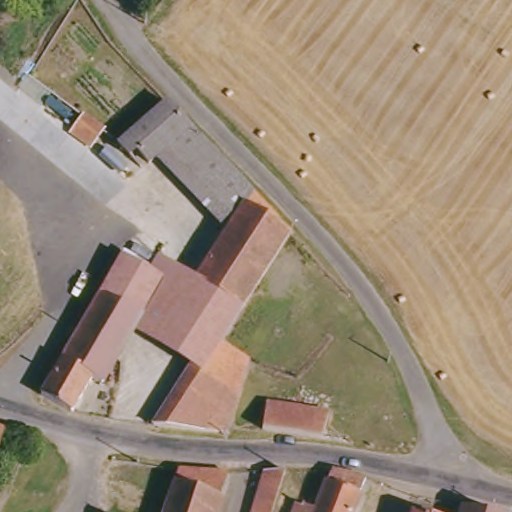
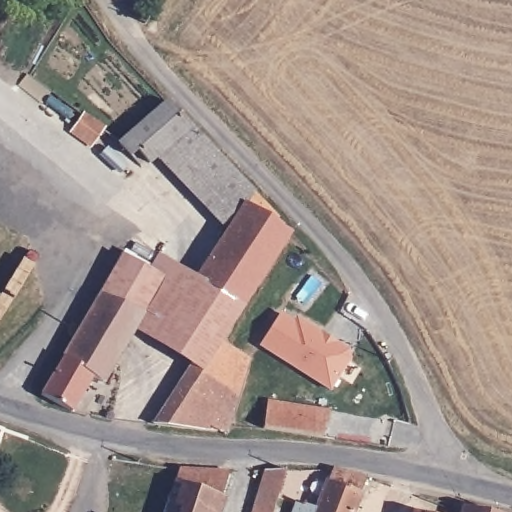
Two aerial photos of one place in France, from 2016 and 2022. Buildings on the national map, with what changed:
unchanged [(185,122),(160,145),(142,161),(119,134),(162,97),(185,122)]
unchanged [(82,115),(102,130),(91,146),(70,132),(82,115)]
unchanged [(185,122),(247,186),(227,216),(160,145),(185,122)]
unchanged [(273,214),(269,219),(285,229),(237,304),(188,274),(227,216),(247,186),(273,214)]
unchanged [(116,251),(141,267),(157,276),(129,323),(97,378),(86,372),(67,406),(36,390),(116,251)]
unchanged [(237,304),(215,337),(217,339),(244,355),(224,427),(203,426),(161,422),(196,366),(129,323),(157,276),(141,267),(152,251),(188,274),(237,304)]
new [(296,321),(299,317),(326,335),(324,339),(331,343),(338,342),(350,350),(352,357),(332,388),(262,343),(282,312),(296,321)]
unchanged [(267,397),(326,406),(322,433),(262,424),(267,397)]
unchanged [(0,429),(2,430),(0,436),(0,429)]
unchanged [(157,512),(172,465),(224,467),(208,512),(157,512)]
unchanged [(346,512),(286,512),(291,498),(311,506),(327,465),(361,473),(346,512)]
unchanged [(246,512),(260,466),(280,466),(267,512),(246,512)]
unchanged [(504,512),(459,512),(462,502),(504,512)]
unchanged [(419,512),(411,512),(412,510),(419,512)]

